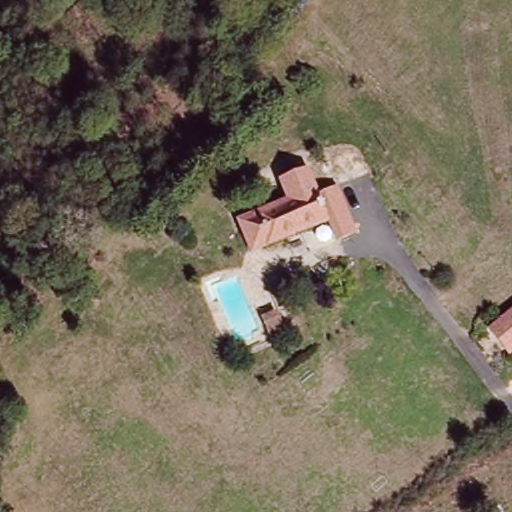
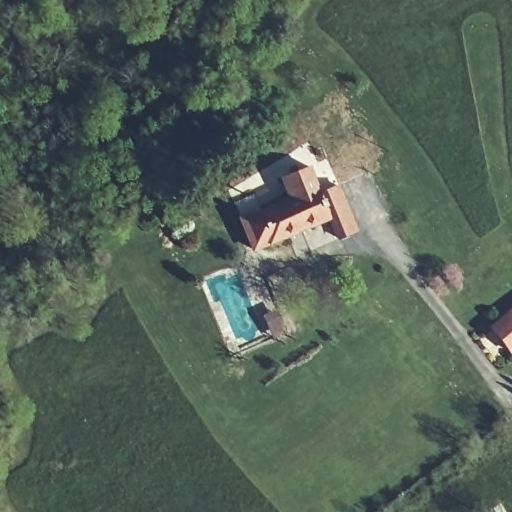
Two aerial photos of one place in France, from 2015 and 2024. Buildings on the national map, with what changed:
unchanged [(335,230),(327,214),(252,248),(239,217),(284,198),(277,184),(307,171),(315,189),(335,180),(353,221),(355,228),(337,235),(335,230)]
unchanged [(260,304),(273,299),(280,315),(267,320),(260,304)]
unchanged [(512,308),(512,348),(492,324),(512,308)]

